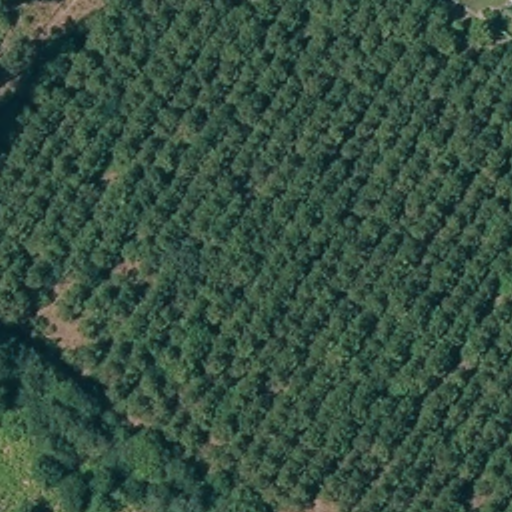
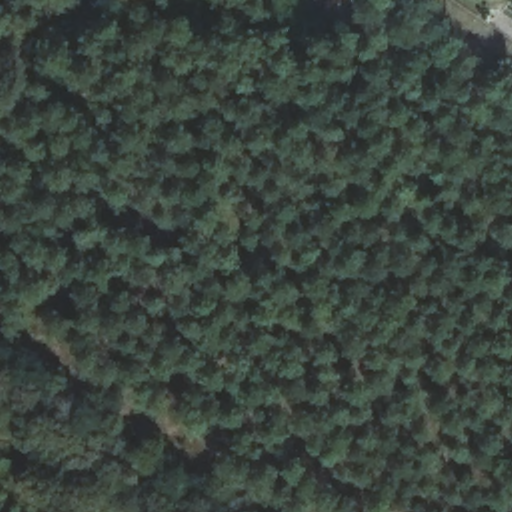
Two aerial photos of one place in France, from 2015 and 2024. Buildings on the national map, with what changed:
[]

